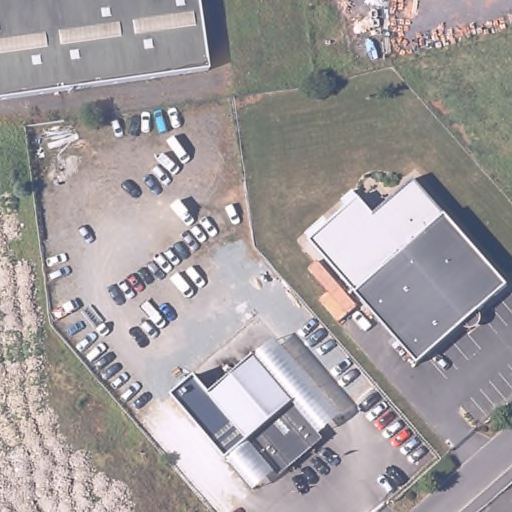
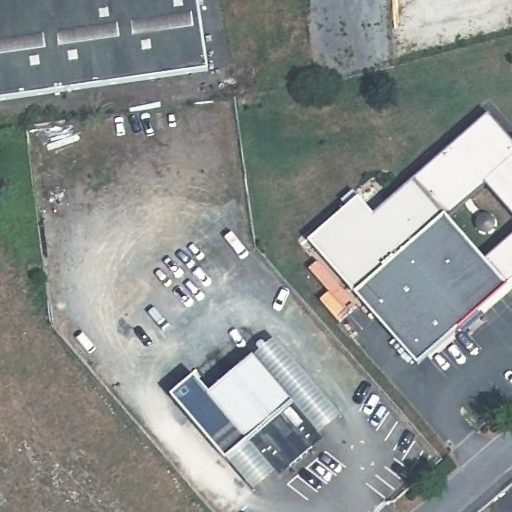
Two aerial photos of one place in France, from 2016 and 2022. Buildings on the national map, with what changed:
unchanged [(196,2),(206,74),(187,77),(57,96),(0,104),(0,0),(195,0),(196,2)]
new [(489,9),(429,20),(425,0),(487,0),(489,9)]
new [(443,218),(412,183),(410,181),(487,112),(512,142),(512,218),(483,185),(447,216),(485,257),(512,233),(512,280),(503,288),(443,218)]
unchanged [(356,294),(308,243),(357,198),(375,216),(412,183),(443,218),(356,294)]
unchanged [(443,218),(503,288),(417,362),(356,294),(443,218)]
unchanged [(291,406),(250,359),(266,344),(271,341),(337,416),(316,434),(291,406)]
unchanged [(242,440),(205,398),(250,359),(291,406),(316,434),(306,443),(305,444),(308,448),(310,450),(309,451),(287,470),(282,464),(271,474),(242,440)]
unchanged [(252,490),(172,397),(194,376),(211,394),(205,398),(242,440),(271,474),(252,490)]

